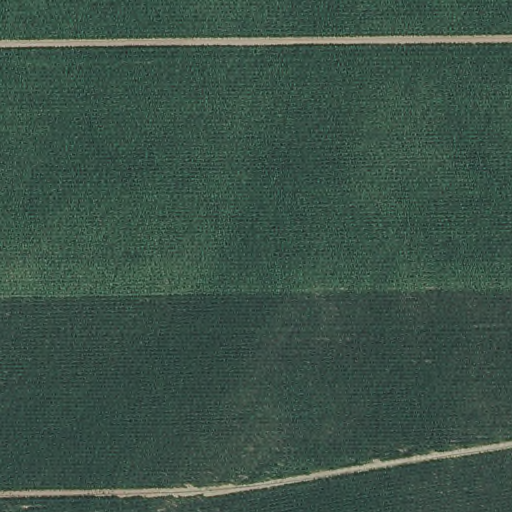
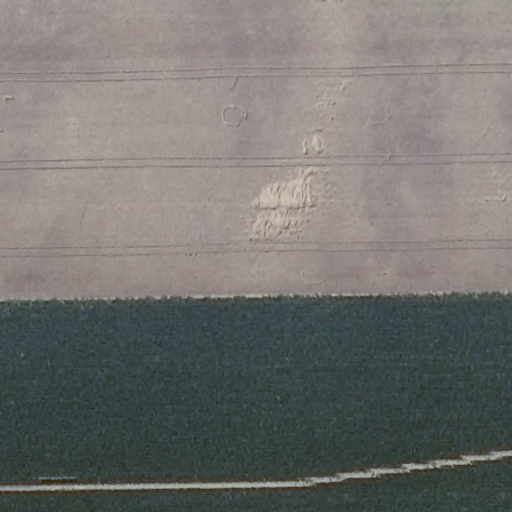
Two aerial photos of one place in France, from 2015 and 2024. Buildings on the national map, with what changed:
[]

